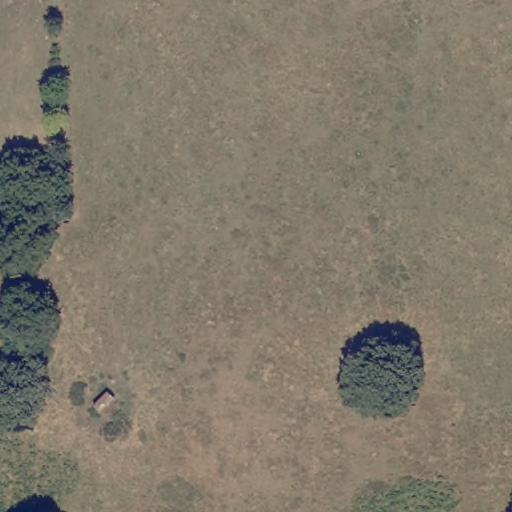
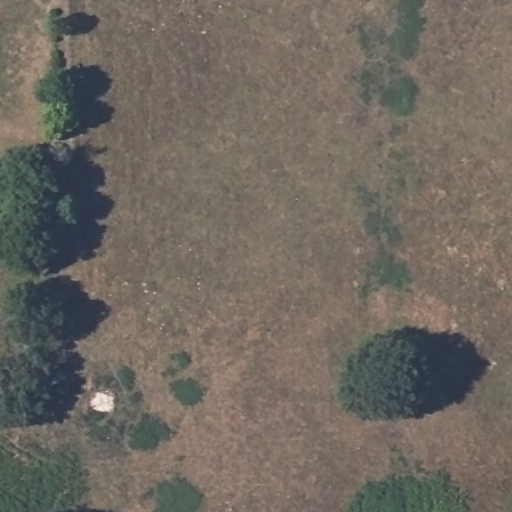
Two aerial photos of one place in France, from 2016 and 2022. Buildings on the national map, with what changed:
[]

